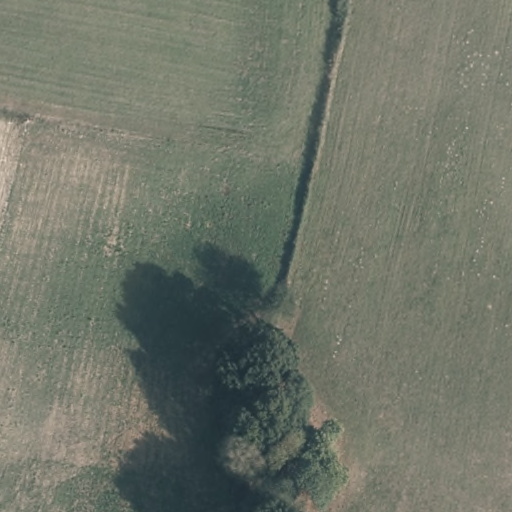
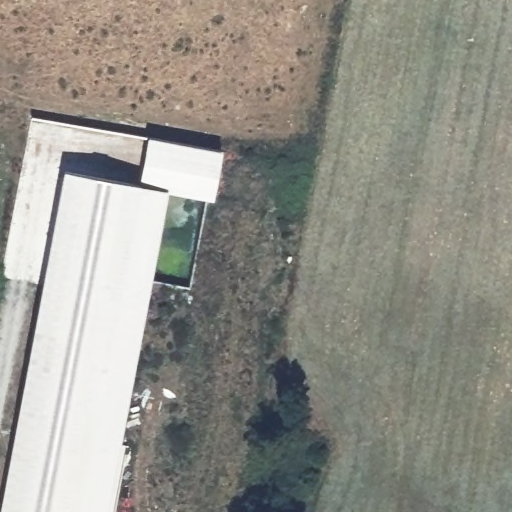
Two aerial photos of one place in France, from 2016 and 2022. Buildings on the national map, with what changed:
new [(222,151),(213,197),(166,188),(139,183),(148,137),(222,151)]
new [(166,188),(107,512),(0,512),(0,509),(63,170),(139,183),(166,188)]

